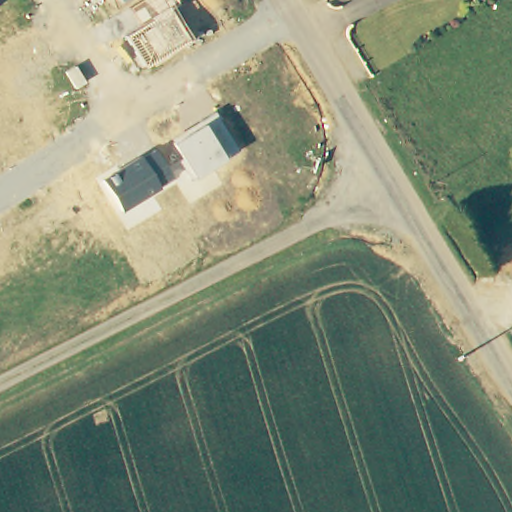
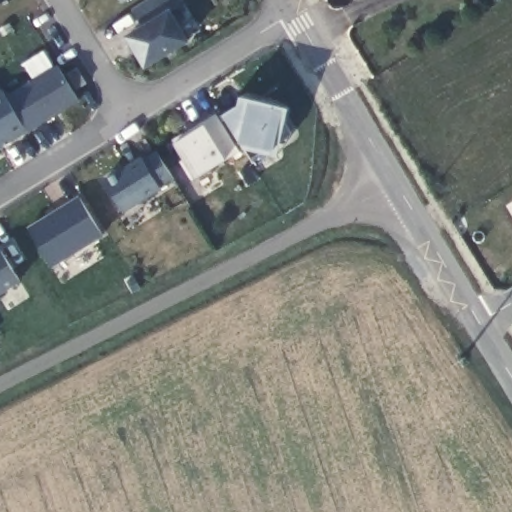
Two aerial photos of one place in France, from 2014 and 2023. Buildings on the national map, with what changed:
unchanged [(7,0),(0,4),(0,0),(7,0)]
unchanged [(121,0),(127,0),(122,3),(121,0)]
unchanged [(173,7),(193,41),(145,69),(126,36),(142,27),(131,8),(145,0),(177,0),(179,4),(173,7)]
new [(0,148),(0,91),(3,89),(7,96),(32,80),(22,62),(40,50),(51,69),(58,64),(80,101),(0,148)]
new [(290,108),(277,156),(246,150),(224,115),(239,106),(242,97),(290,108)]
unchanged [(239,151),(226,160),(195,177),(175,143),(172,138),(215,113),(239,151)]
unchanged [(172,177),(160,185),(161,188),(123,211),(104,178),(156,149),(172,177)]
new [(53,267),(28,228),(79,197),(104,235),(53,267)]
unchanged [(21,281),(0,294),(0,249),(1,248),(21,281)]

